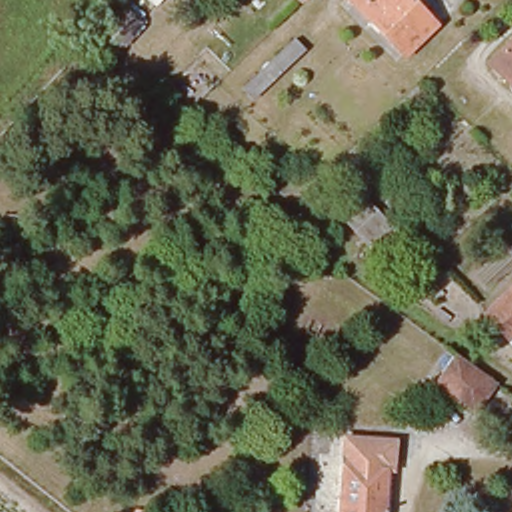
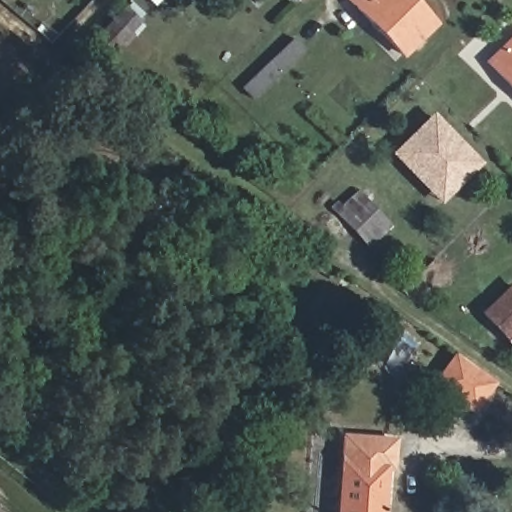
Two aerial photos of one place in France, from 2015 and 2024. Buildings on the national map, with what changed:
unchanged [(299,0),(304,0),(301,2),(299,0)]
unchanged [(349,0),(407,0),(427,24),(394,52),(349,0)]
unchanged [(95,44),(133,10),(142,18),(104,55),(95,44)]
unchanged [(512,37),(512,91),(484,61),(512,37)]
unchanged [(241,86),(292,39),(301,50),(250,100),(241,86)]
new [(441,207),(390,154),(432,112),(482,164),(441,207)]
unchanged [(332,213),(337,205),(346,212),(361,200),(385,225),(363,246),(332,213)]
unchanged [(508,291),(512,295),(512,352),(482,318),(508,291)]
unchanged [(438,382),(455,358),(489,385),(471,409),(438,382)]
unchanged [(398,447),(396,481),(382,482),(380,511),(380,512),(336,512),(342,441),(398,447)]

